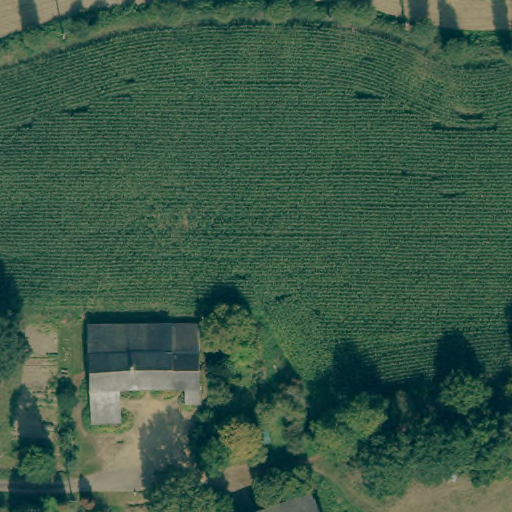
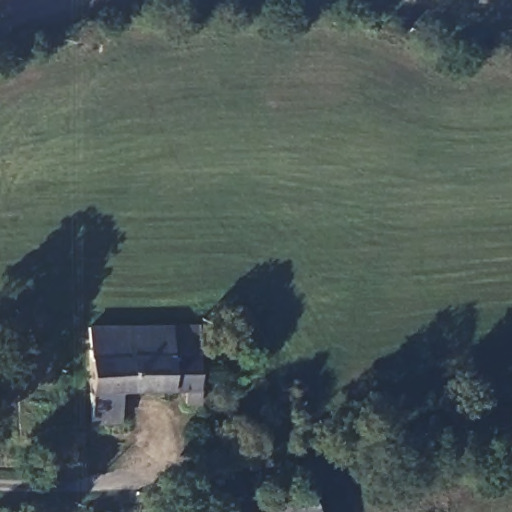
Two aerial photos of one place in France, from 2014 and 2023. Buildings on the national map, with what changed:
unchanged [(182,385),(119,388),(119,419),(91,420),(86,332),(87,328),(195,321),(200,396),(183,396),(182,385)]
unchanged [(302,494),(310,512),(260,512),(302,494)]

